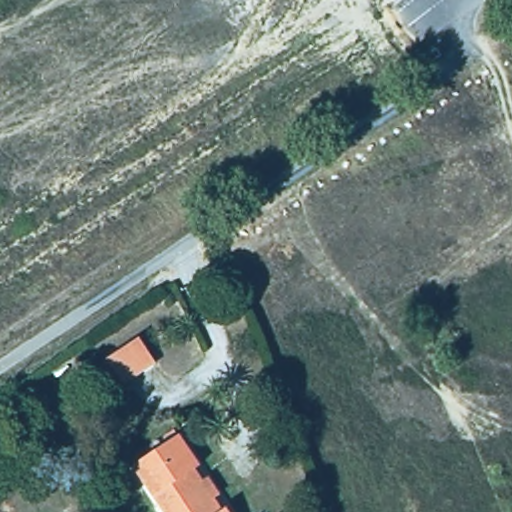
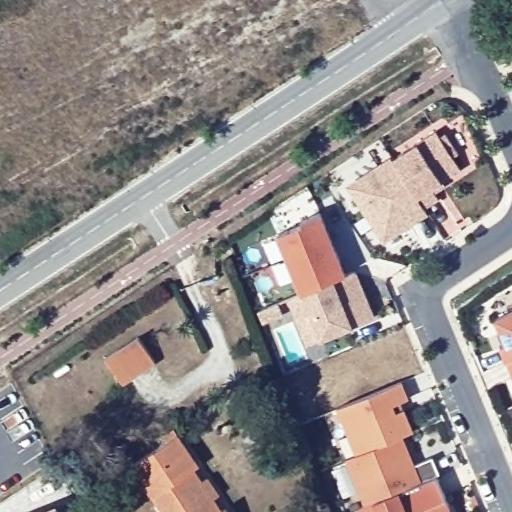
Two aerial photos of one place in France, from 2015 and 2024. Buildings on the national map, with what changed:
new [(435,131),(440,137),(445,134),(459,153),(453,158),(461,170),(443,184),(445,188),(435,195),(439,200),(425,210),(427,214),(383,244),(345,186),(390,156),(393,159),(415,144),(435,131)]
new [(302,223),(300,220),(319,212),(345,273),(300,291),(276,234),(302,223)]
new [(375,318),(355,326),(320,340),(307,345),(287,299),(300,291),(345,273),(355,270),(365,292),(375,318)]
new [(494,317),(512,310),(512,379),(499,349),(507,346),(494,317)]
unchanged [(116,387),(99,361),(134,338),(152,365),(116,387)]
new [(402,401),(414,430),(402,435),(415,464),(432,456),(440,474),(435,476),(424,480),(397,491),(374,501),(365,504),(345,460),(357,455),(337,408),(402,380),(410,398),(402,401)]
unchanged [(227,505),(231,512),(164,512),(131,462),(177,431),(201,465),(195,469),(222,508),(227,505)]
new [(374,501),(397,491),(435,476),(445,499),(451,512),(358,512),(356,507),(374,501)]
new [(60,512),(37,512),(57,504),(60,512)]

